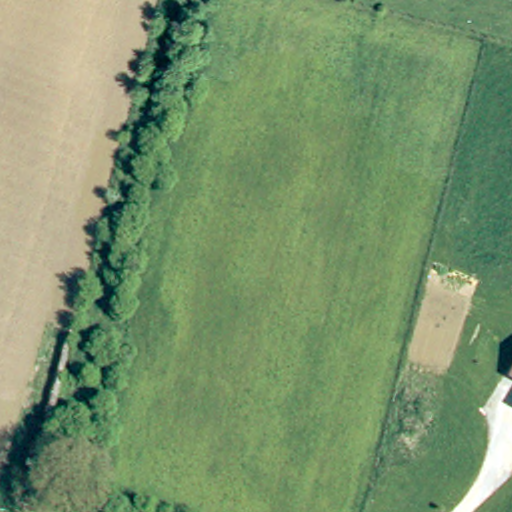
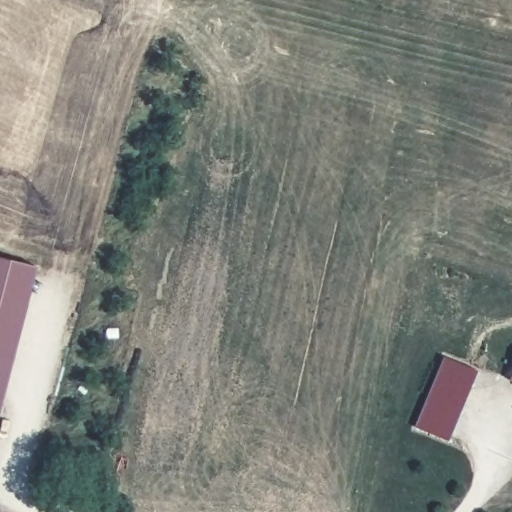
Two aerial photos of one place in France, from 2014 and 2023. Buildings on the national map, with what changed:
new [(1,413),(0,412),(0,256),(39,267),(1,413)]
new [(445,355),(479,372),(448,443),(416,426),(445,355)]
unchanged [(512,375),(512,380),(510,379),(512,375)]

